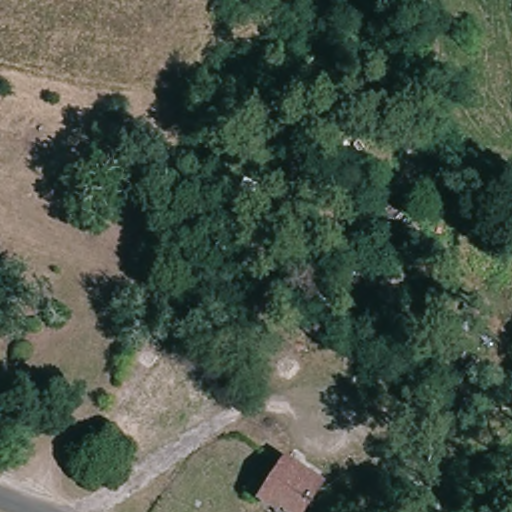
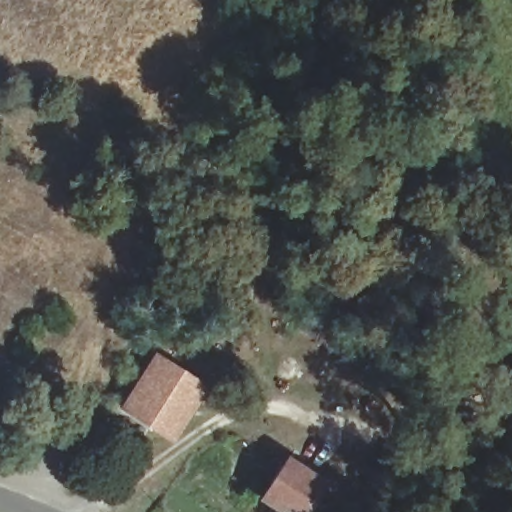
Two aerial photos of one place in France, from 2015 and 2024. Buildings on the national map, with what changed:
new [(172,444),(117,407),(154,350),(209,386),(172,444)]
demolished [(160,432),(130,413),(166,361),(193,380),(160,432)]
unchanged [(289,461),(326,485),(308,512),(287,512),(265,498),(289,461)]

